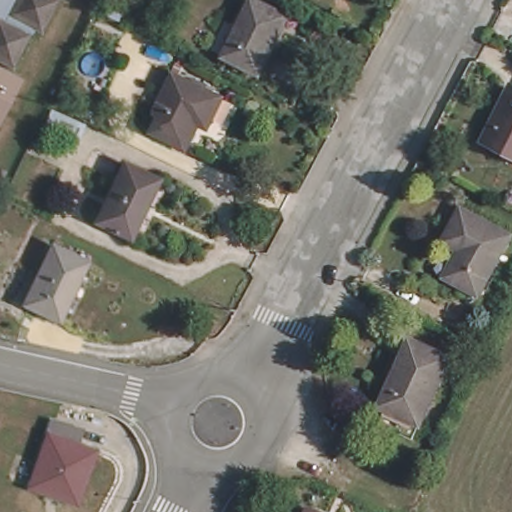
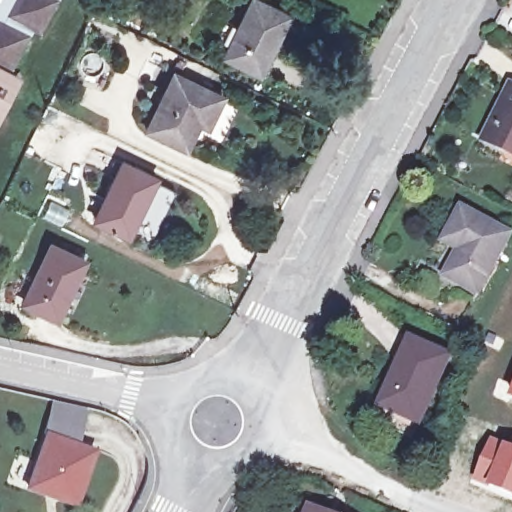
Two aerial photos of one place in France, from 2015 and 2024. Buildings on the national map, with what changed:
unchanged [(35,30),(16,70),(0,62),(0,0),(61,0),(45,34),(35,30)]
unchanged [(259,70),(224,54),(248,0),(255,0),(285,14),(259,70)]
unchanged [(20,82),(2,119),(0,117),(0,73),(20,82)]
unchanged [(223,96),(210,124),(207,121),(192,150),(147,129),(157,107),(166,111),(184,76),(223,96)]
unchanged [(490,135),(512,92),(512,147),(510,146),(490,135)]
unchanged [(130,235),(95,219),(125,161),(158,178),(130,235)]
unchanged [(465,245),(450,237),(466,206),(512,231),(512,236),(482,291),(450,273),(465,245)]
unchanged [(55,317),(21,300),(50,243),(84,259),(55,317)]
unchanged [(419,423),(382,405),(411,341),(448,360),(419,423)]
new [(512,400),(510,399),(512,393),(512,400)]
unchanged [(37,434),(42,419),(77,431),(72,447),(87,452),(68,505),(22,488),(41,435),(37,434)]
new [(507,444),(511,432),(512,433),(512,498),(473,483),(491,437),(507,444)]
unchanged [(311,508),(322,512),(309,512),(311,508)]

